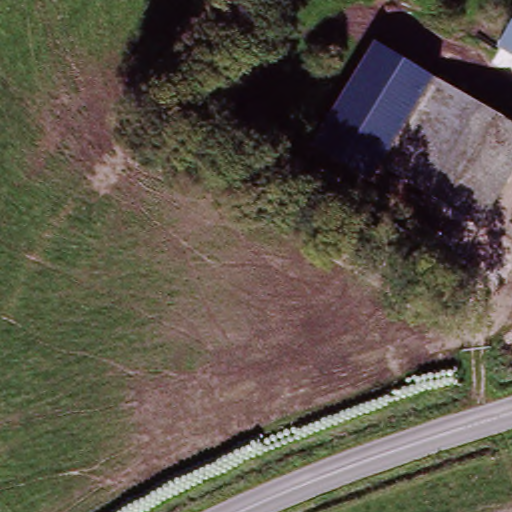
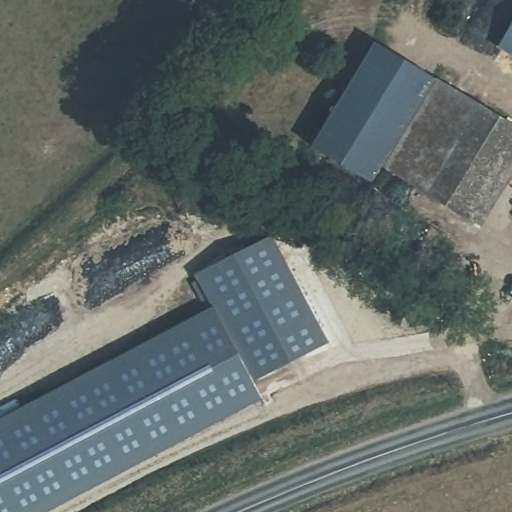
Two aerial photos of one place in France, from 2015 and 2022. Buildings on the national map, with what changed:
unchanged [(500,49),(512,32),(512,56),(500,49)]
unchanged [(434,78),(432,82),(378,174),(369,188),(307,151),(374,43),(434,78)]
unchanged [(407,224),(427,200),(378,174),(432,82),(512,126),(512,170),(474,235),(455,221),(442,251),(407,224)]
new [(272,235),(328,343),(304,354),(249,247),(272,235)]
new [(249,247),(304,354),(252,382),(214,311),(195,276),(249,247)]
new [(252,382),(261,400),(48,512),(0,512),(0,424),(214,311),(252,382)]

